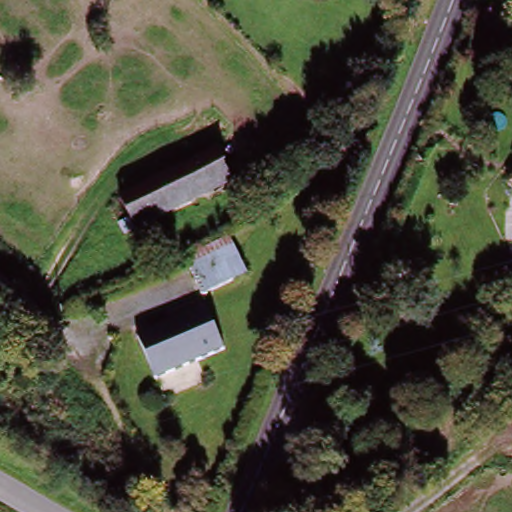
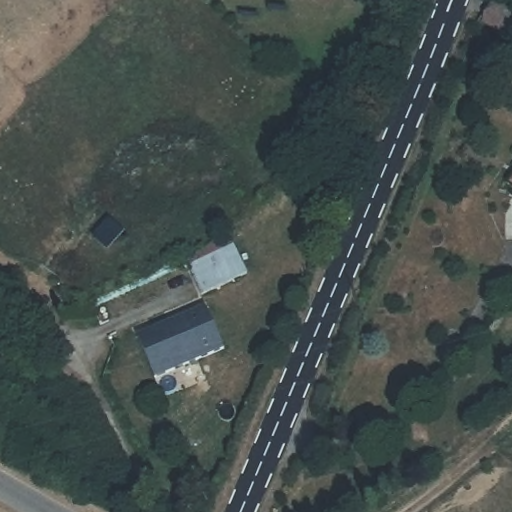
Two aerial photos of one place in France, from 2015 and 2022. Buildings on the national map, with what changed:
unchanged [(512,36),(510,38),(489,18),(502,3),(512,12),(512,36)]
demolished [(139,226),(125,198),(212,153),(226,182),(180,205),(160,216),(139,226)]
unchanged [(191,285),(217,272),(227,291),(198,303),(191,285)]
unchanged [(155,388),(137,346),(206,317),(220,357),(155,388)]

